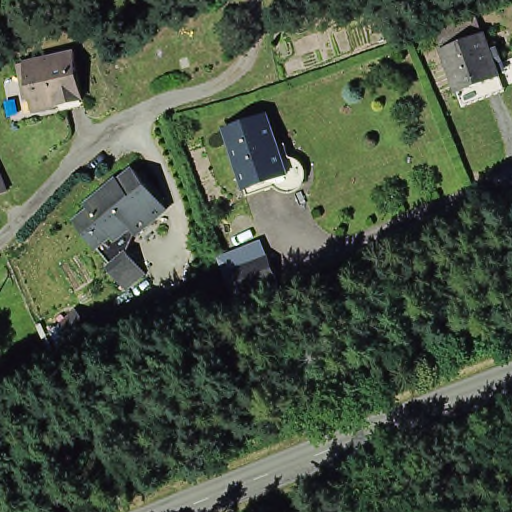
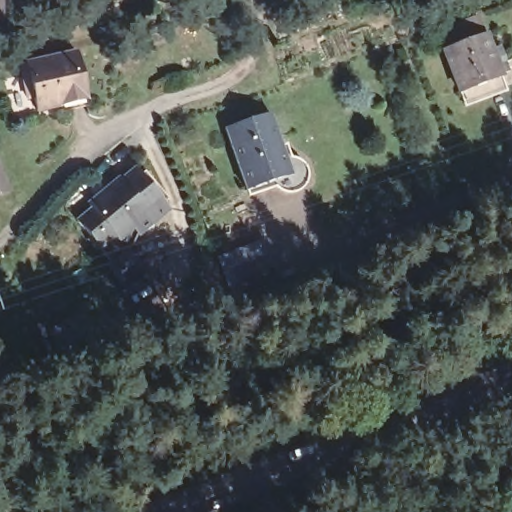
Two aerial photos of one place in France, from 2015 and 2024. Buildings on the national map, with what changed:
unchanged [(459,99),(441,52),(486,35),(504,83),(507,90),(463,108),(459,99)]
unchanged [(61,104),(36,110),(34,97),(25,98),(18,64),(23,62),(75,49),(80,69),(87,99),(61,104)]
unchanged [(298,175),(314,175),(304,188),(289,193),(276,183),(246,192),(244,185),(226,124),(271,110),(288,163),(294,161),(298,175)]
unchanged [(0,190),(0,171),(6,187),(0,190)]
unchanged [(109,262),(73,216),(91,203),(93,208),(124,180),(128,184),(139,174),(172,214),(136,242),(126,249),(109,262)]
unchanged [(271,277),(238,288),(228,265),(262,253),(271,277)]

